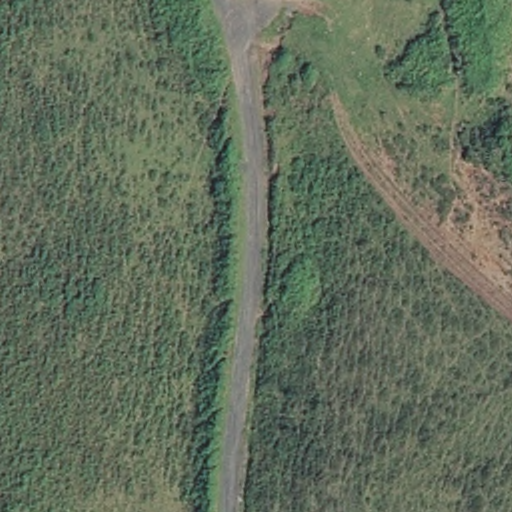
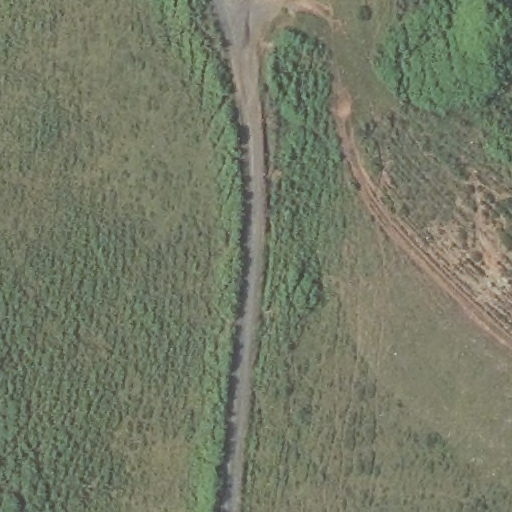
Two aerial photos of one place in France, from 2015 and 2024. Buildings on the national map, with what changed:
[]

